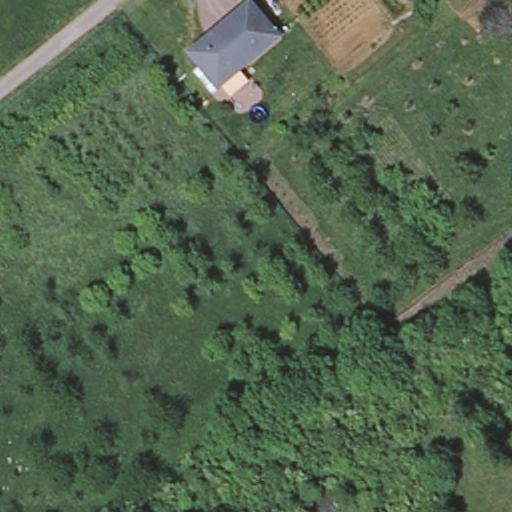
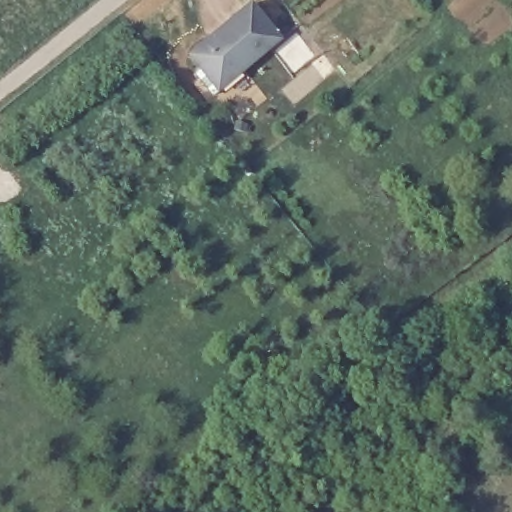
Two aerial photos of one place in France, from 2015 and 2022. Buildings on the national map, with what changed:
unchanged [(294,7),(288,0),(303,0),(294,7)]
unchanged [(197,72),(203,67),(191,55),(253,4),(281,38),(221,88),(214,93),(197,72)]

